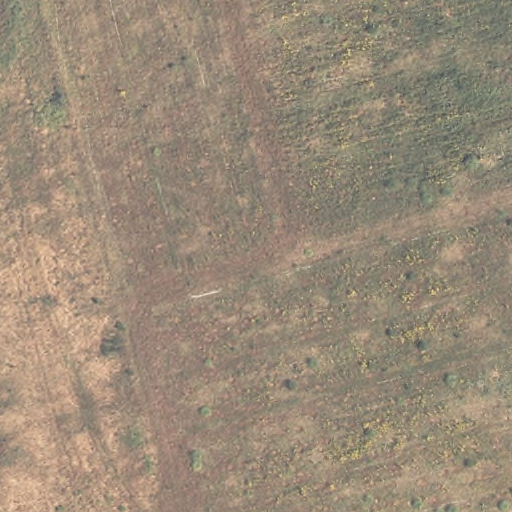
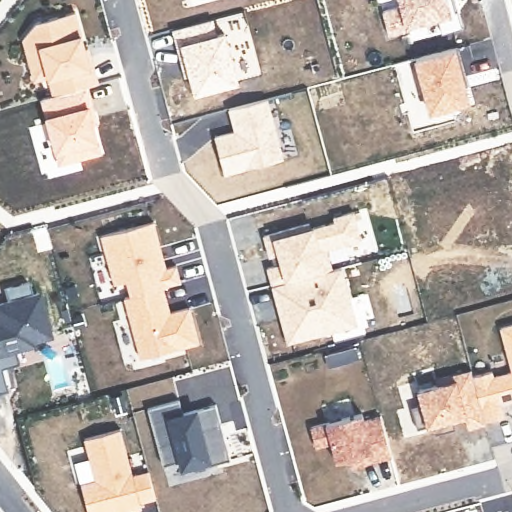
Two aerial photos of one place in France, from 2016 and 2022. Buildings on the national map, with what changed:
new [(395,0),(447,0),(451,14),(453,13),(458,31),(437,36),(433,20),(404,28),(405,33),(385,39),(378,14),(397,9),(395,0)]
new [(21,54),(18,42),(31,26),(69,16),(80,53),(83,52),(88,69),(93,88),(49,99),(44,80),(30,84),(21,54)]
new [(218,34),(226,32),(238,84),(194,95),(180,44),(176,44),(174,29),(214,19),(218,34)]
new [(453,50),(461,80),(458,81),(464,104),(426,115),(412,61),(453,50)]
new [(283,156),(224,174),(215,136),(234,130),(229,109),(268,99),(283,156)]
new [(362,240),(327,250),(332,272),(272,289),(268,269),(282,265),(275,239),(286,235),(284,229),(311,223),(312,228),(336,223),(334,217),(355,211),(362,240)]
new [(149,227),(159,264),(145,269),(146,277),(171,270),(176,287),(159,292),(127,300),(123,287),(111,290),(98,242),(149,227)]
new [(337,270),(351,319),(325,326),(328,335),(284,348),(277,324),(285,322),(284,315),(280,317),(277,304),(272,305),(268,289),(337,270)]
new [(127,300),(159,292),(163,309),(156,310),(158,319),(185,312),(195,348),(137,364),(121,302),(127,300)]
new [(414,394),(435,389),(433,383),(460,376),(468,374),(470,380),(489,375),(490,381),(509,375),(498,332),(512,327),(512,403),(497,408),(500,420),(482,425),(483,428),(465,433),(462,421),(450,424),(453,433),(433,439),(430,429),(414,434),(408,411),(418,408),(414,394)]
new [(175,404),(179,418),(212,409),(218,432),(215,433),(217,441),(220,439),(227,464),(206,470),(203,459),(159,471),(143,413),(175,404)]
new [(364,415),(366,422),(382,418),(393,459),(362,467),(360,458),(338,464),(333,445),(317,449),(312,429),(364,415)]
new [(92,486),(81,444),(116,434),(129,481),(145,477),(151,504),(136,508),(137,512),(83,512),(78,490),(92,486)]

